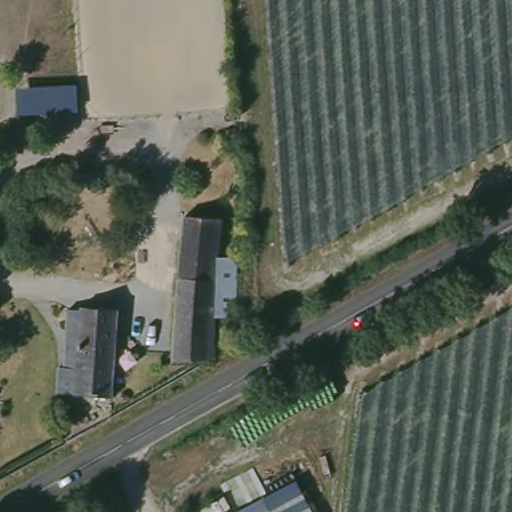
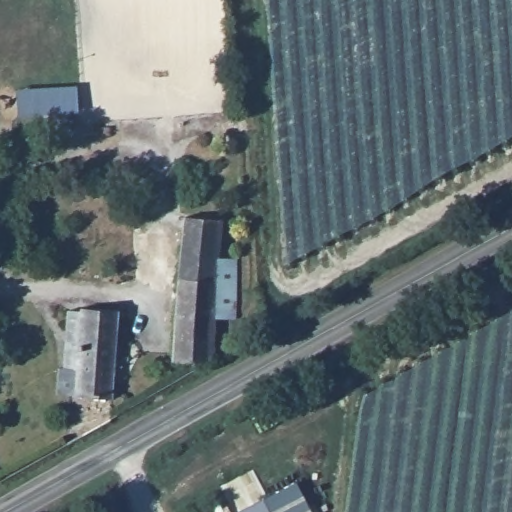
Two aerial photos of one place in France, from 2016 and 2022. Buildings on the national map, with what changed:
unchanged [(16,89),(78,86),(80,114),(17,118),(16,89)]
unchanged [(214,354),(214,365),(201,372),(171,370),(182,223),(222,226),(221,262),(233,263),(230,305),(228,353),(214,354)]
unchanged [(62,399),(62,357),(57,357),(59,317),(77,318),(78,308),(116,310),(108,403),(62,399)]
unchanged [(297,483),(312,512),(237,512),(297,483)]

